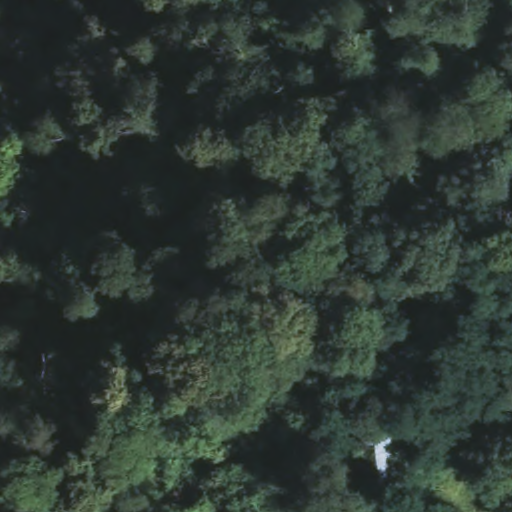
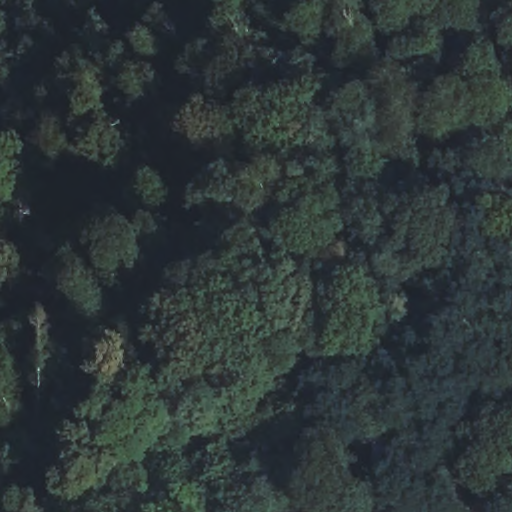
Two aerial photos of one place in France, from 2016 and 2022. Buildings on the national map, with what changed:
unchanged [(362,498),(356,434),(377,432),(396,430),(403,494),(362,498)]

